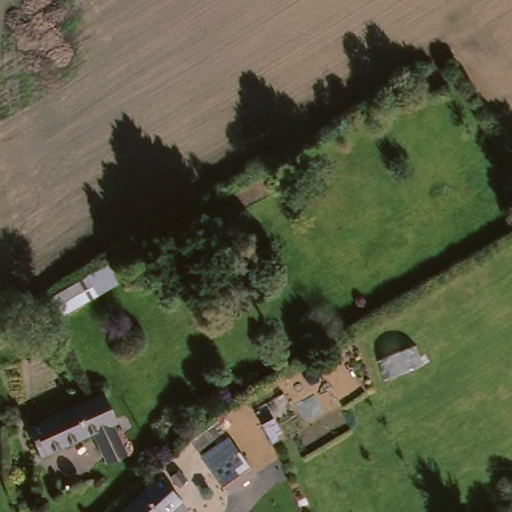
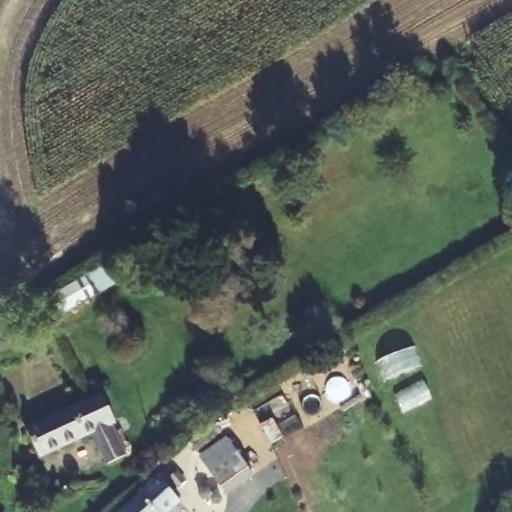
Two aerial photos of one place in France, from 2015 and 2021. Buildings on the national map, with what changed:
unchanged [(116,256),(126,274),(72,304),(61,287),(116,256)]
unchanged [(120,417),(116,419),(130,450),(112,459),(97,429),(45,452),(31,424),(108,389),(120,417)]
unchanged [(263,403),(283,437),(271,444),(252,411),(263,403)]
unchanged [(231,430),(205,451),(198,442),(225,421),(231,430)]
unchanged [(237,438),(263,475),(236,494),(210,458),(237,438)]
unchanged [(185,496),(167,512),(120,512),(164,472),(185,496)]

